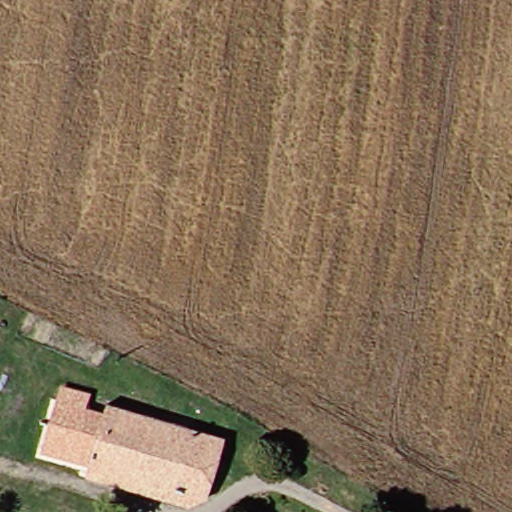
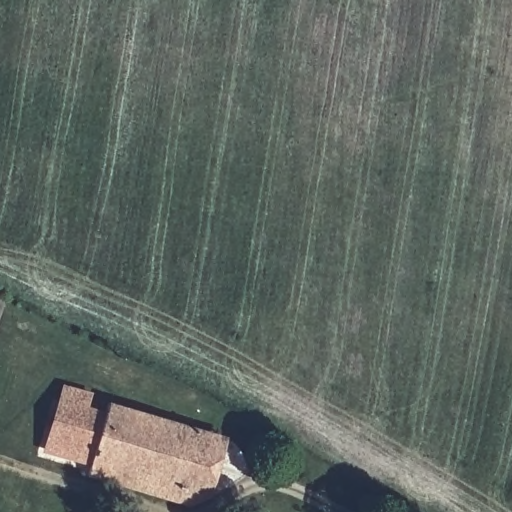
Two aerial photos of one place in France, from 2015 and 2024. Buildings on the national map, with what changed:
unchanged [(59,441),(61,435),(56,432),(63,414),(75,413),(87,378),(108,386),(103,402),(126,407),(131,399),(194,426),(211,434),(214,435),(196,491),(185,489),(178,487),(100,457),(59,441)]
unchanged [(196,491),(214,435),(230,436),(229,438),(214,496),(196,491)]
unchanged [(180,501),(175,499),(97,468),(100,457),(178,487),(185,489),(180,501)]

